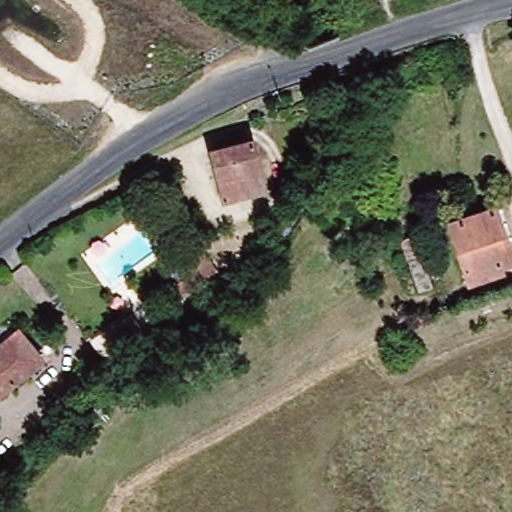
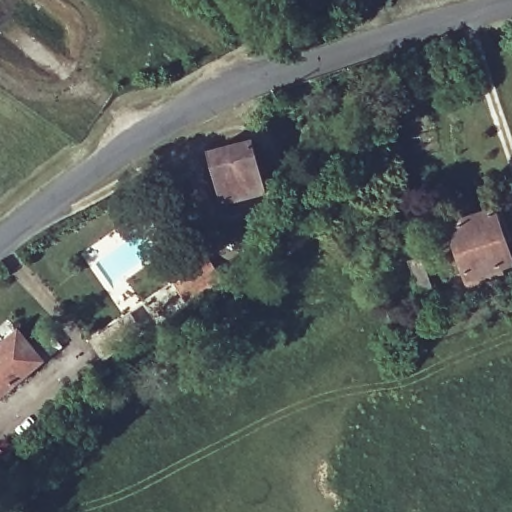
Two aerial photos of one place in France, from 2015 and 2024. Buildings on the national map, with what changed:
unchanged [(252,140),(265,188),(221,198),(210,151),(252,140)]
unchanged [(507,259),(465,274),(446,223),(488,208),(507,259)]
unchanged [(225,275),(199,303),(185,290),(199,274),(191,267),(205,254),(225,275)]
unchanged [(0,390),(0,341),(15,329),(37,358),(0,390)]

